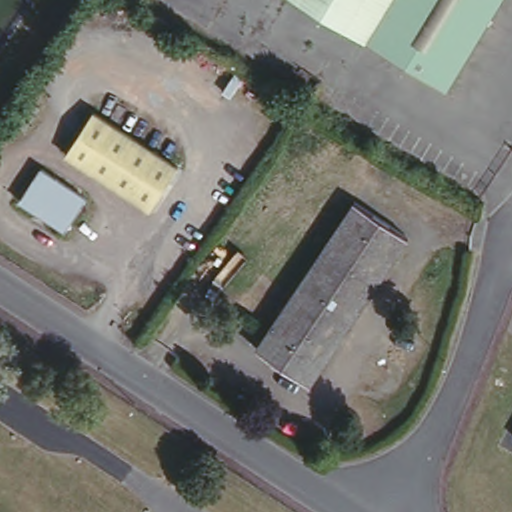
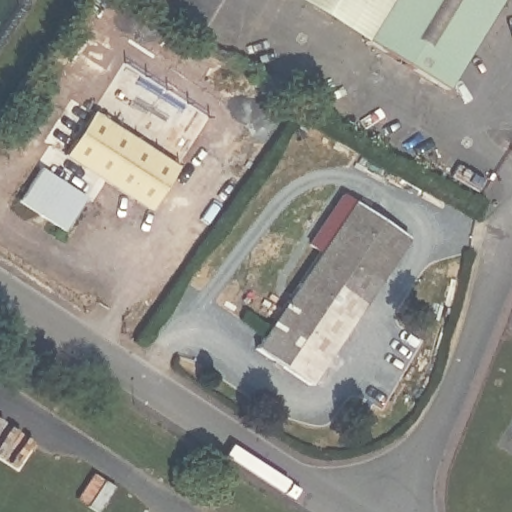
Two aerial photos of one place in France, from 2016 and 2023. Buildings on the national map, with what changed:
unchanged [(365,40),(297,0),(389,0),(365,40)]
unchanged [(449,90),(365,40),(389,0),(501,0),(449,90)]
unchanged [(176,168),(150,208),(65,153),(92,113),(176,168)]
unchanged [(82,194),(65,225),(20,197),(41,167),(82,194)]
unchanged [(411,237),(310,388),(256,349),(357,202),(411,237)]

